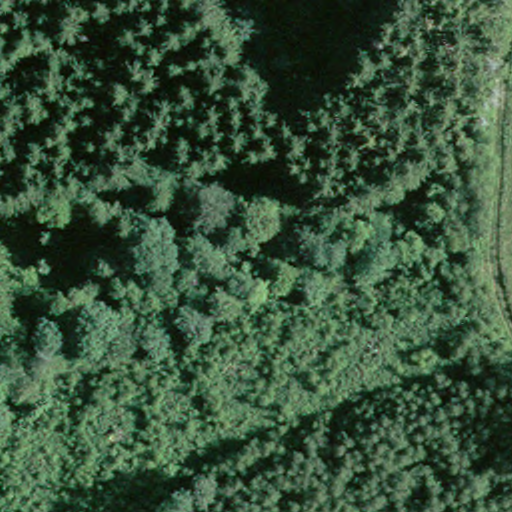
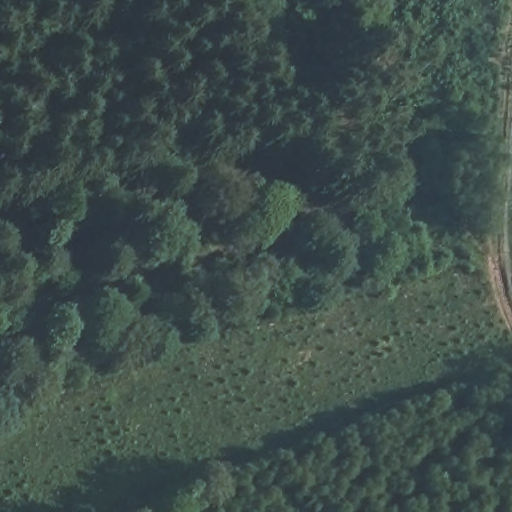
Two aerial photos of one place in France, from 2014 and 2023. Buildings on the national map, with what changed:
[]

